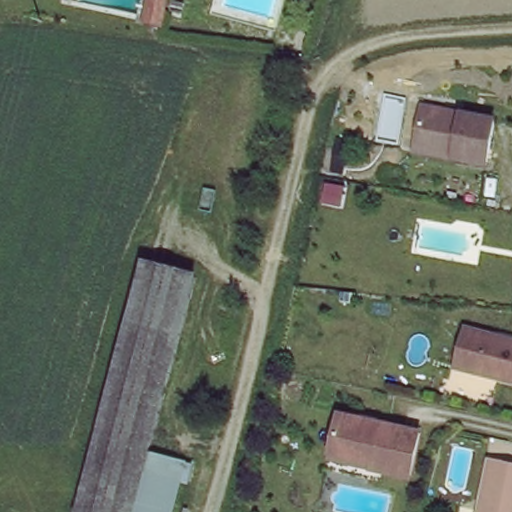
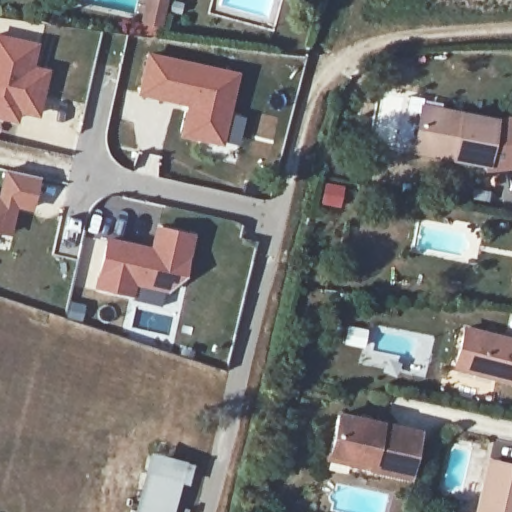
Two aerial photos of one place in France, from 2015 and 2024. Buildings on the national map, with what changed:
new [(33,64),(50,68),(38,116),(20,113),(17,124),(0,120),(0,34),(39,42),(33,64)]
new [(241,72),(224,146),(180,137),(186,106),(138,94),(147,51),(241,72)]
unchanged [(417,145),(424,107),(425,102),(465,110),(497,117),(488,165),(454,158),(416,150),(417,145)]
new [(40,177),(32,210),(16,207),(11,235),(0,233),(0,185),(4,169),(40,177)]
new [(150,246),(155,225),(196,234),(185,275),(165,292),(135,285),(133,296),(92,287),(106,236),(150,246)]
demolished [(144,257),(196,267),(183,322),(131,309),(144,257)]
demolished [(151,452),(136,512),(81,512),(131,309),(183,322),(151,452)]
unchanged [(465,329),(512,342),(512,382),(494,377),(490,372),(456,364),(465,329)]
unchanged [(331,449),(340,415),(419,434),(408,478),(368,467),(329,457),(331,449)]
unchanged [(186,459),(174,512),(135,512),(151,452),(186,459)]
unchanged [(512,471),(512,512),(477,512),(489,466),(512,471)]

